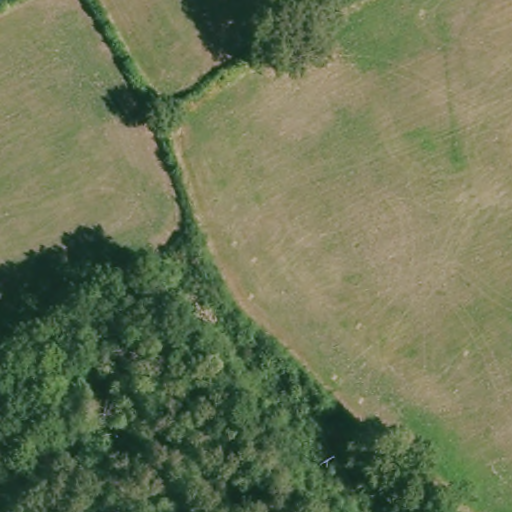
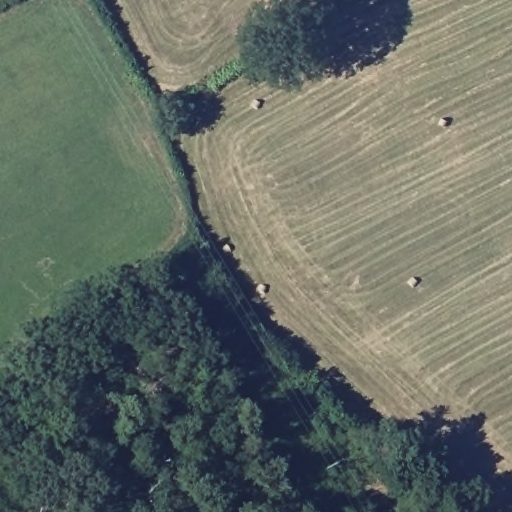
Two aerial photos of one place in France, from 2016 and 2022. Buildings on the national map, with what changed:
[]

